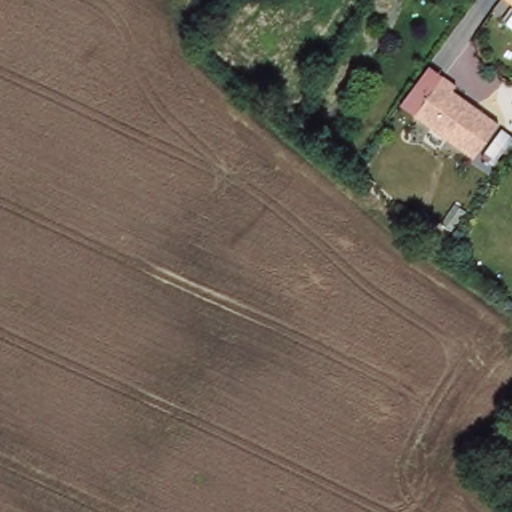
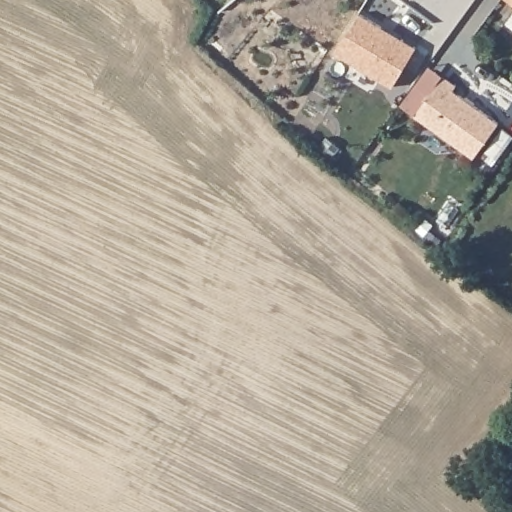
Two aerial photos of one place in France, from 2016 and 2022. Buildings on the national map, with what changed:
unchanged [(509,0),(512,0),(512,2),(509,0)]
new [(359,13),(383,27),(381,30),(401,42),(402,39),(417,48),(393,87),(335,52),(359,13)]
unchanged [(460,87),(457,90),(506,126),(476,162),(416,116),(445,75),(460,87)]

